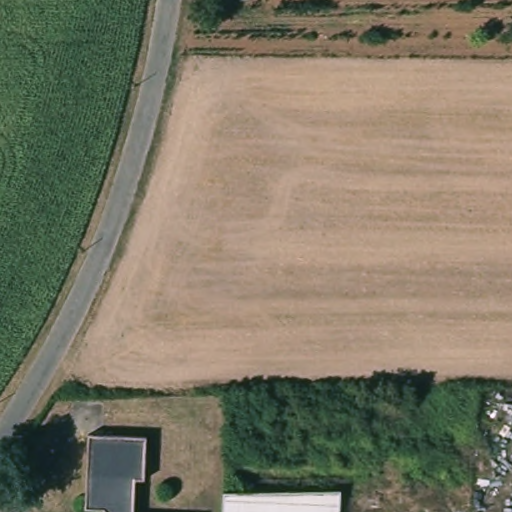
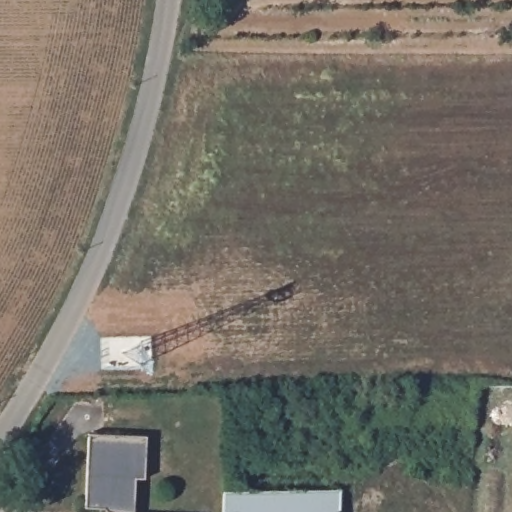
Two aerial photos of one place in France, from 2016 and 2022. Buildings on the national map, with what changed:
unchanged [(86,436),(145,437),(143,480),(134,480),(134,492),(109,490),(85,488),(86,436)]
unchanged [(85,512),(85,488),(109,490),(134,492),(133,512),(85,512)]
unchanged [(337,496),(337,512),(221,512),(221,498),(337,496)]

